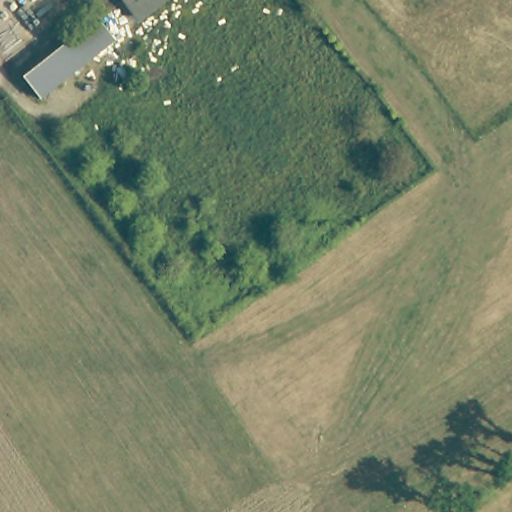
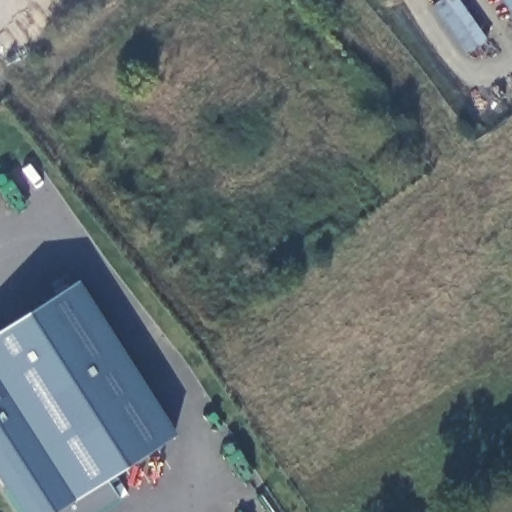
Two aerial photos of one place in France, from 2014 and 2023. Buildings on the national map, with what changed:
unchanged [(283,260),(324,229),(332,240),(290,270),(283,260)]
new [(76,282),(175,435),(105,481),(119,501),(101,512),(20,512),(0,481),(0,331),(76,282)]

